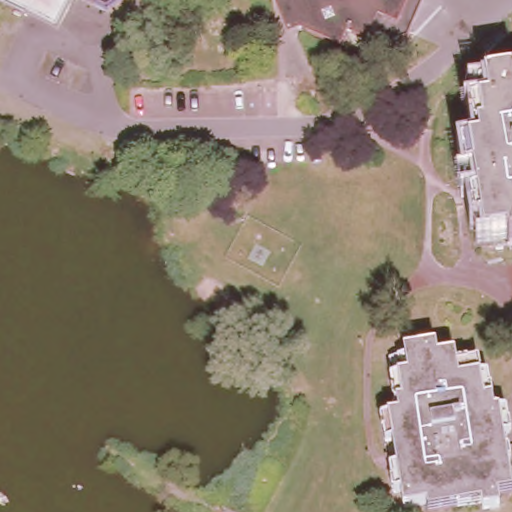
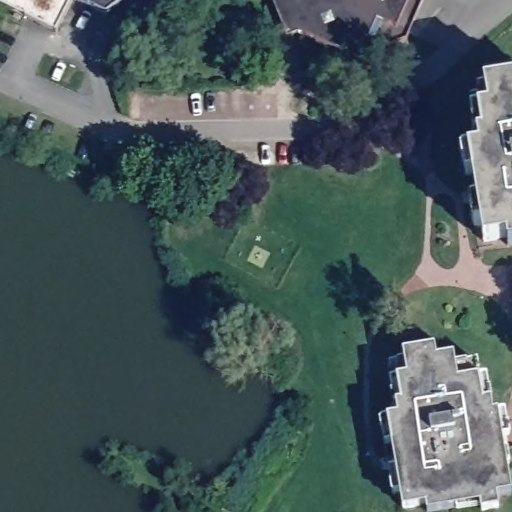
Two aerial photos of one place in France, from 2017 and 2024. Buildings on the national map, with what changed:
unchanged [(1,0),(68,0),(54,27),(1,0)]
unchanged [(85,0),(118,0),(104,10),(85,0)]
unchanged [(286,35),(272,0),(284,0),(295,30),(286,35)]
unchanged [(376,19),(368,39),(362,36),(359,41),(349,37),(350,35),(346,32),(339,49),(295,30),(284,0),(410,0),(398,27),(376,19)]
unchanged [(507,235),(484,240),(482,224),(474,226),(469,199),(477,197),(475,185),(474,174),(466,175),(462,149),(479,145),(477,132),(473,110),(469,91),(484,89),(483,83),(512,78),(512,241),(508,242),(507,235)]
unchanged [(428,509),(426,500),(404,505),(401,488),(393,491),(389,465),(394,465),(393,453),(391,441),(384,442),(380,416),(398,412),(395,398),(392,377),(388,357),(402,355),(401,349),(434,343),(436,353),(453,351),(454,360),(474,356),(477,372),(484,370),(488,395),(491,408),(504,406),(509,432),(502,434),(504,445),(507,461),(512,491),(496,493),(498,503),(482,506),(481,499),(459,503),(428,509)]

